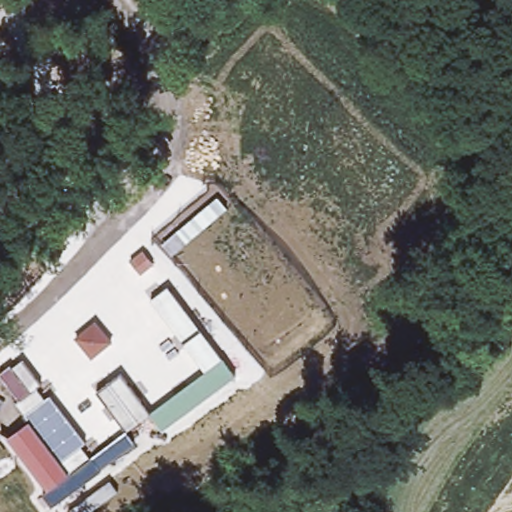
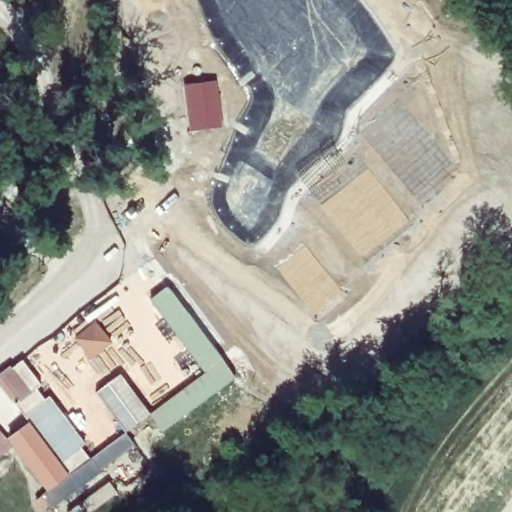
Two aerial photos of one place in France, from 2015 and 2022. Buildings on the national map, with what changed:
new [(215,83),(220,126),(192,130),(186,87),(215,83)]
new [(24,193),(14,204),(0,192),(0,182),(5,176),(24,193)]
unchanged [(172,257),(162,245),(217,199),(227,210),(172,257)]
unchanged [(206,373),(151,300),(169,288),(222,361),(235,377),(162,431),(151,414),(206,373)]
unchanged [(76,339),(96,322),(112,343),(92,360),(76,339)]
unchanged [(30,422),(16,403),(18,401),(0,375),(0,374),(11,366),(12,368),(22,361),(41,386),(36,389),(45,401),(50,397),(85,444),(80,448),(91,460),(127,433),(135,445),(100,470),(102,473),(51,508),(42,495),(47,491),(7,439),(30,422)]
unchanged [(98,393),(121,377),(149,415),(127,431),(98,393)]
new [(2,457),(0,455),(0,430),(14,446),(2,457)]
unchanged [(119,494),(91,512),(67,512),(110,482),(119,494)]

